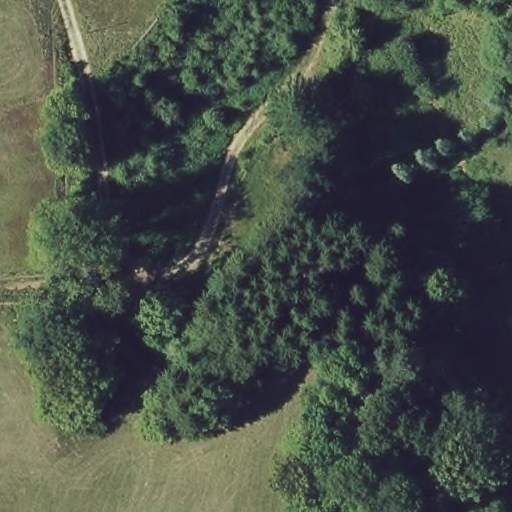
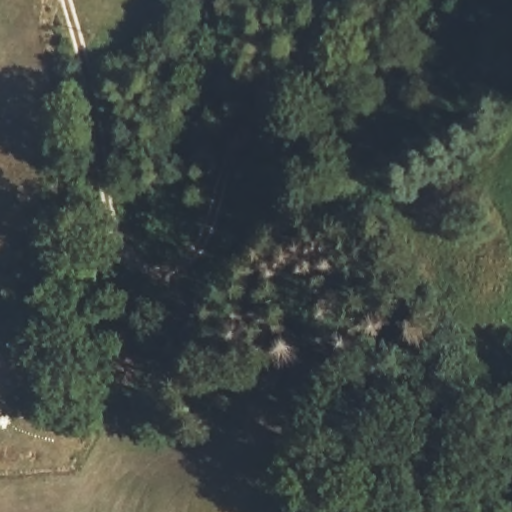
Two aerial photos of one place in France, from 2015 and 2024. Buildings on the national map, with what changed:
[]

